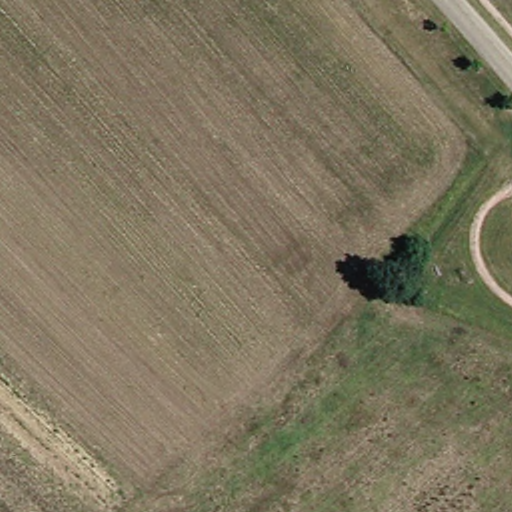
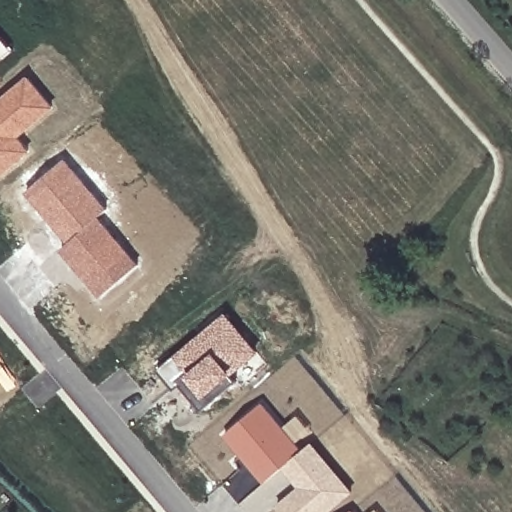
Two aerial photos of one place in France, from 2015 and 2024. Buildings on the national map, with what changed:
new [(15,50),(0,63),(0,33),(15,50)]
new [(30,75),(56,106),(21,136),(32,151),(0,177),(0,100),(30,75)]
new [(61,250),(69,243),(27,192),(67,158),(109,207),(100,215),(141,264),(102,297),(61,250)]
new [(182,385),(176,390),(159,370),(227,312),(261,352),(232,375),(237,381),(203,410),(182,385)]
new [(225,435),(264,402),(303,450),(282,467),(265,483),(225,435)]
new [(277,506),(300,487),(282,467),(303,450),(314,441),(356,492),(331,512),(282,512),(277,506)]
new [(354,510),(356,512),(351,512),(354,510)]

